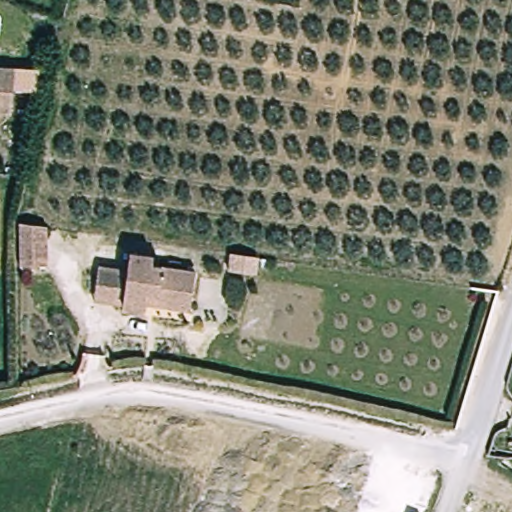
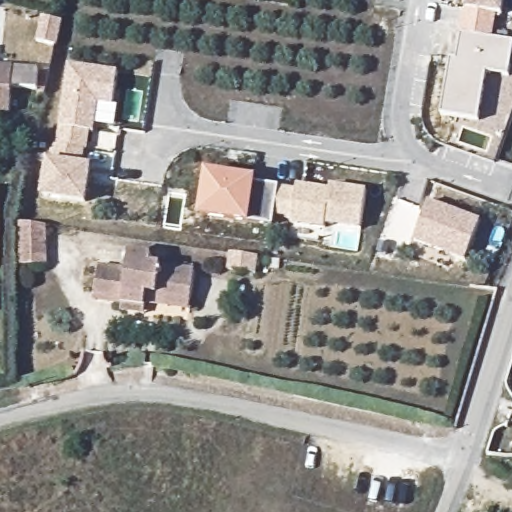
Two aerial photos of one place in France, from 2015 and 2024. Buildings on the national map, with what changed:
new [(500,18),(495,41),(512,43),(512,69),(511,78),(488,75),(480,122),(443,117),(452,61),(458,63),(463,36),(467,13),(469,0),(508,0),(505,19),(500,18)]
new [(115,108),(100,106),(96,135),(93,135),(89,153),(87,152),(87,166),(95,168),(89,206),(43,201),(49,162),(55,163),(57,148),(58,147),(60,130),(64,102),(69,66),(119,72),(115,108)]
unchanged [(18,70),(15,115),(0,114),(0,68),(18,70)]
new [(257,185),(281,186),(280,190),(297,192),(298,187),(330,191),(331,187),(368,193),(363,232),(328,228),(328,232),(292,227),(292,221),(276,219),(274,227),(252,225),(251,227),(199,219),(206,172),(258,180),(257,185)]
new [(467,262),(415,244),(429,203),(482,222),(467,262)]
unchanged [(1,268),(0,268),(0,216),(1,268)]
unchanged [(20,227),(49,231),(49,271),(21,272),(20,227)]
unchanged [(192,305),(148,298),(147,311),(113,308),(113,300),(97,299),(100,271),(131,274),(133,255),(153,258),(151,267),(197,275),(192,305)]

